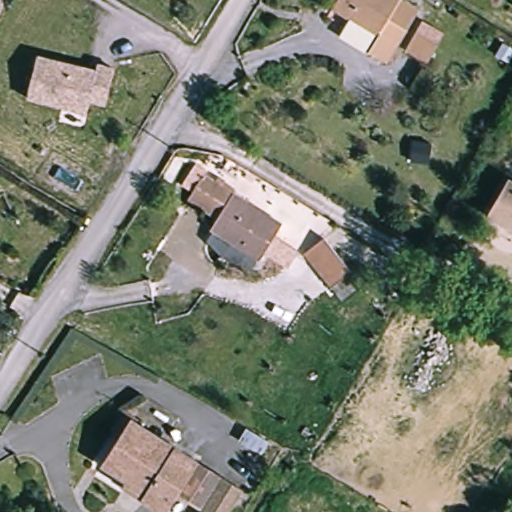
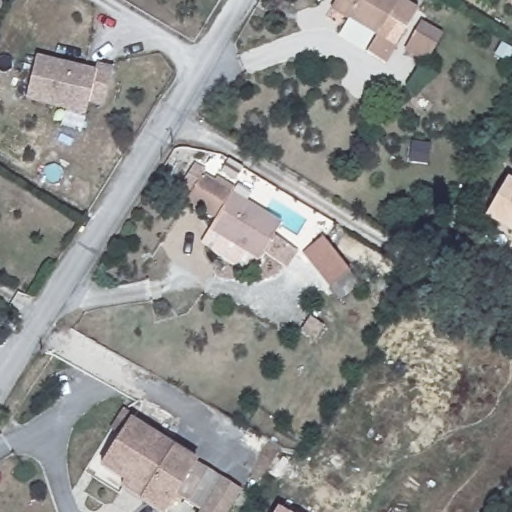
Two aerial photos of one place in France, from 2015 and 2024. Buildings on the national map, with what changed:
unchanged [(390,58),(371,46),(378,33),(334,7),(339,0),(411,0),(422,6),(390,58)]
unchanged [(0,10),(0,2),(3,3),(0,10)]
unchanged [(426,66),(406,54),(416,37),(436,49),(426,66)]
unchanged [(113,70),(105,106),(89,103),(87,115),(26,102),(35,60),(88,71),(94,72),(96,66),(113,70)]
unchanged [(203,170),(202,173),(279,220),(271,234),(296,250),(285,267),(261,252),(256,259),(208,230),(215,220),(184,201),(189,193),(178,186),(193,164),(203,170)]
unchanged [(484,217),(491,206),(511,174),(512,175),(512,233),(484,217)]
unchanged [(318,233),(351,263),(334,282),(301,252),(318,233)]
unchanged [(125,473),(105,462),(118,434),(110,430),(123,408),(133,414),(129,419),(193,457),(161,511),(141,499),(118,485),(125,473)]
unchanged [(220,475),(240,487),(225,512),(199,512),(220,475)]
unchanged [(286,507),(294,512),(283,512),(286,507)]

